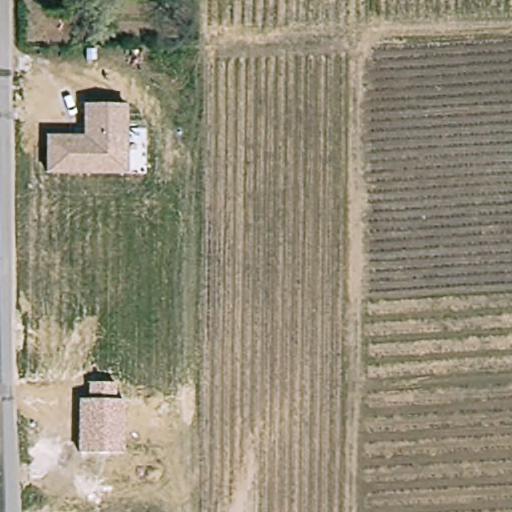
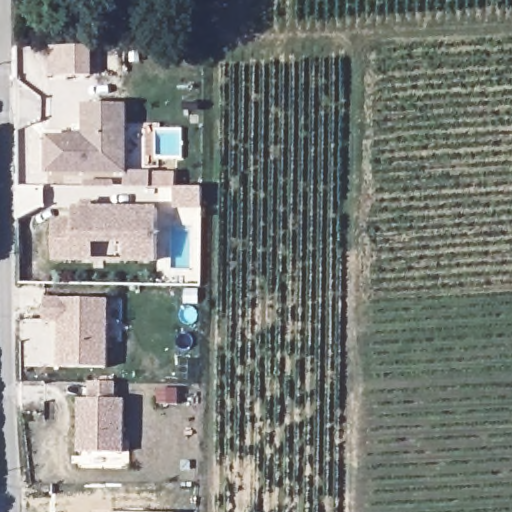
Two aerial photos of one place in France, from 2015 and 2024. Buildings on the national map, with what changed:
new [(93,76),(49,77),(49,47),(92,46),(93,76)]
unchanged [(46,173),(47,135),(82,135),(83,105),(125,108),(128,176),(46,173)]
new [(82,207),(81,202),(92,202),(93,206),(157,207),(157,262),(124,263),(125,244),(92,244),(92,263),(53,263),(53,220),(73,220),(73,208),(82,207)]
new [(109,300),(107,369),(58,368),(58,323),(45,323),(45,298),(109,300)]
unchanged [(125,455),(78,453),(79,401),(88,400),(89,385),(116,386),(116,402),(125,401),(125,455)]

